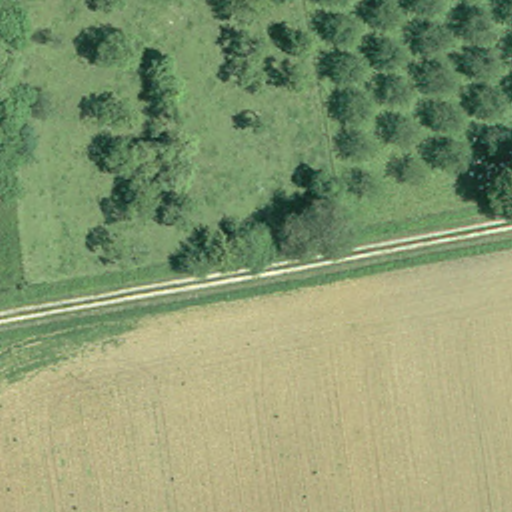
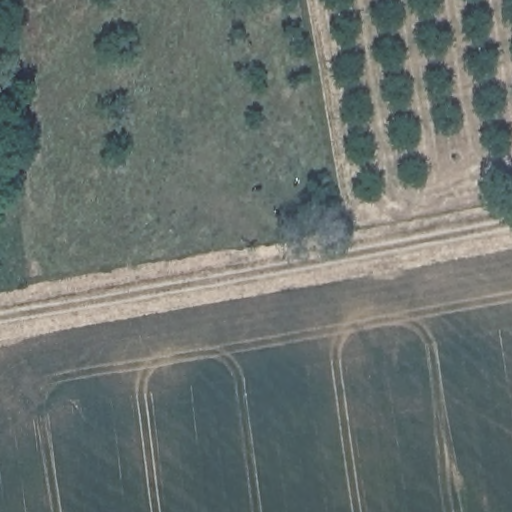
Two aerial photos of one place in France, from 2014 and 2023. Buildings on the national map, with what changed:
[]

